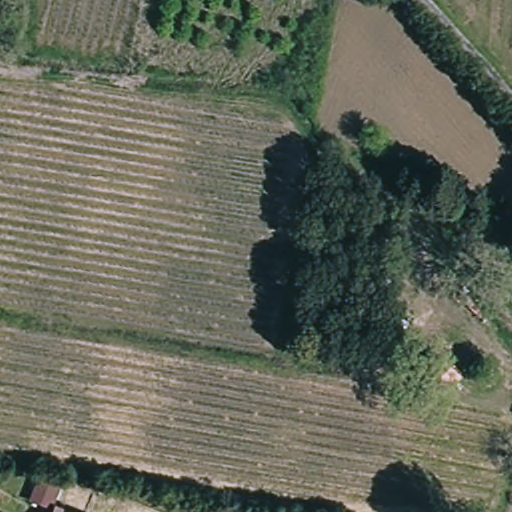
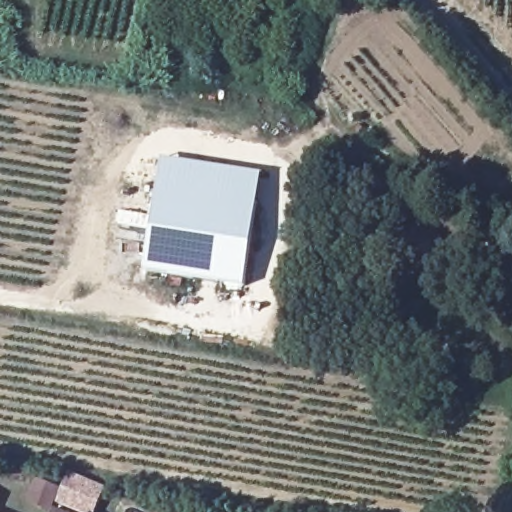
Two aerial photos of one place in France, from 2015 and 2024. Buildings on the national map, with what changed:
new [(166,160),(266,176),(261,205),(162,189),(166,160)]
new [(162,189),(261,205),(247,289),(148,273),(162,189)]
new [(106,492),(96,512),(75,512),(58,504),(70,476),(106,492)]
demolished [(60,512),(62,509),(67,512),(60,512)]

